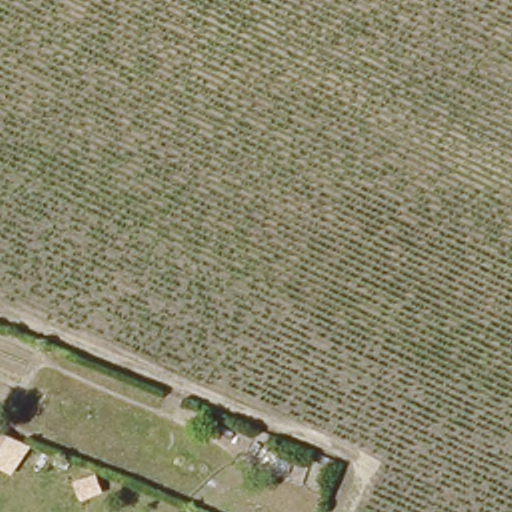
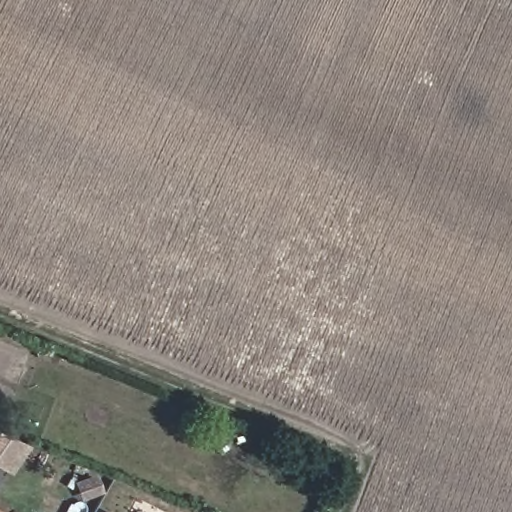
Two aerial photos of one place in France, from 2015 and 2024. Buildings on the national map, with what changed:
unchanged [(0,459),(0,432),(15,437),(0,459)]

